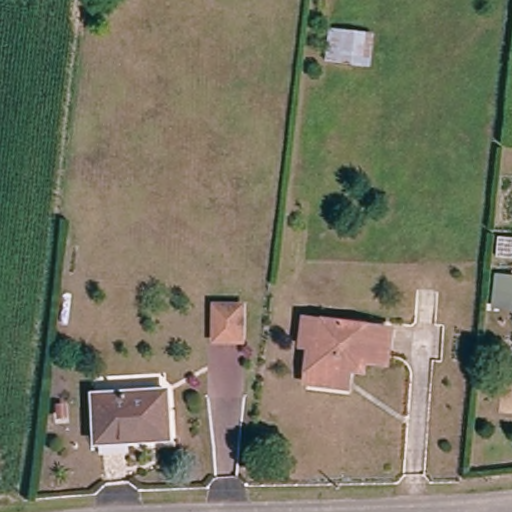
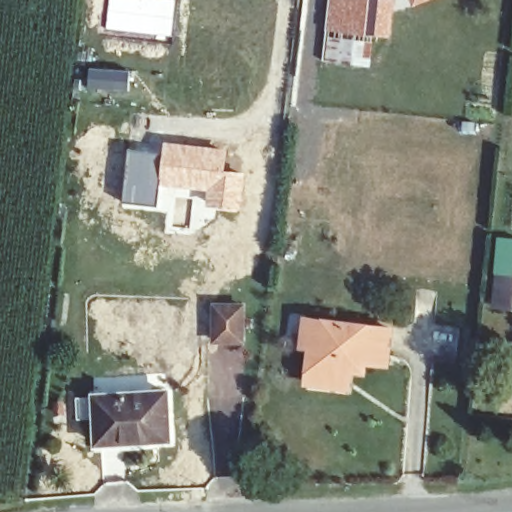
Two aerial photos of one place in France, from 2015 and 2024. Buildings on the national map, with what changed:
new [(109,0),(176,0),(171,37),(105,28),(109,0)]
new [(331,0),(396,0),(391,36),(376,35),(375,39),(327,33),(331,0)]
new [(411,6),(409,0),(427,0),(411,6)]
unchanged [(370,75),(322,69),(327,33),(375,39),(370,75)]
new [(88,65),(129,69),(128,90),(86,86),(88,65)]
new [(161,151),(163,140),(227,145),(225,168),(244,170),(240,209),(204,204),(205,191),(160,186),(161,151)]
new [(127,147),(161,151),(160,186),(158,207),(122,202),(127,147)]
new [(512,239),(512,310),(491,308),(499,237),(512,239)]
unchanged [(236,314),(235,314),(237,338),(237,350),(208,351),(209,314),(236,314)]
unchanged [(334,382),(311,380),(312,355),(313,346),(313,344),(305,344),(306,318),(324,319),(325,320),(389,324),(385,358),(362,356),(361,364),(360,368),(360,369),(349,368),(348,383),(334,382)]
unchanged [(169,398),(170,443),(99,442),(97,399),(169,398)]

